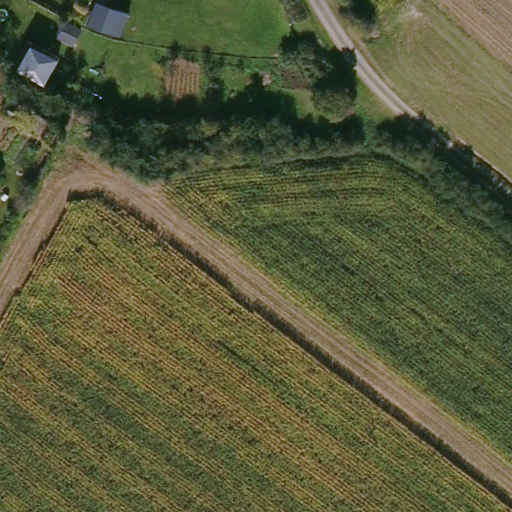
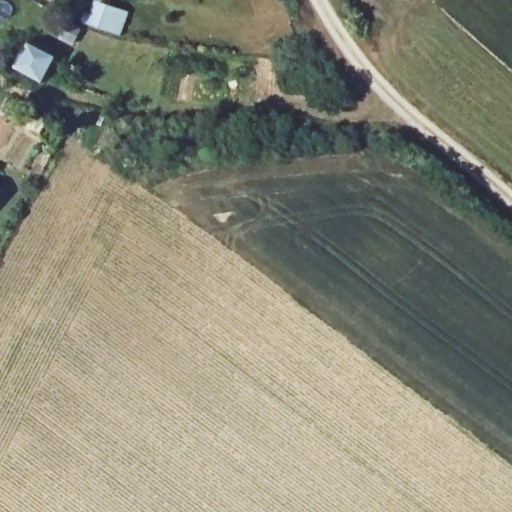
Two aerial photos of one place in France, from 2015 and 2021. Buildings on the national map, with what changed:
unchanged [(95,0),(130,12),(121,39),(85,25),(95,0)]
unchanged [(30,42),(59,59),(44,85),(25,75),(15,68),(30,42)]

